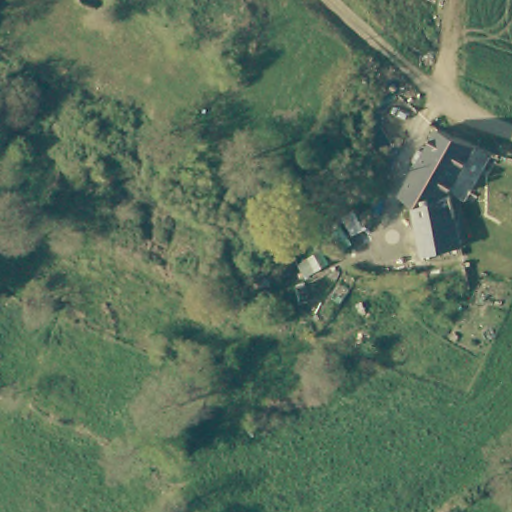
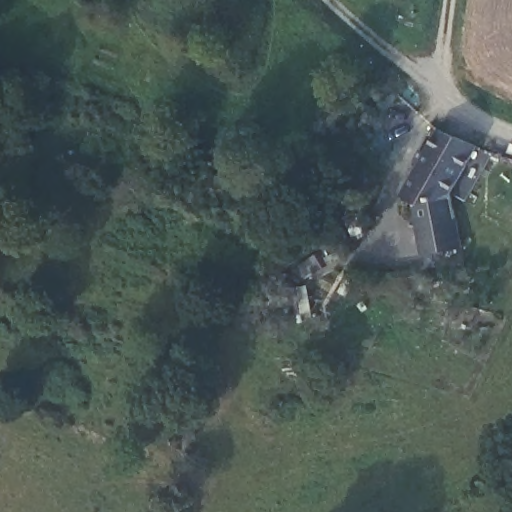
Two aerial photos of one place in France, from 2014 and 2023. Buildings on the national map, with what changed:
unchanged [(475,151),(448,198),(398,196),(437,129),(475,151)]
unchanged [(408,197),(448,198),(463,246),(422,257),(408,197)]

